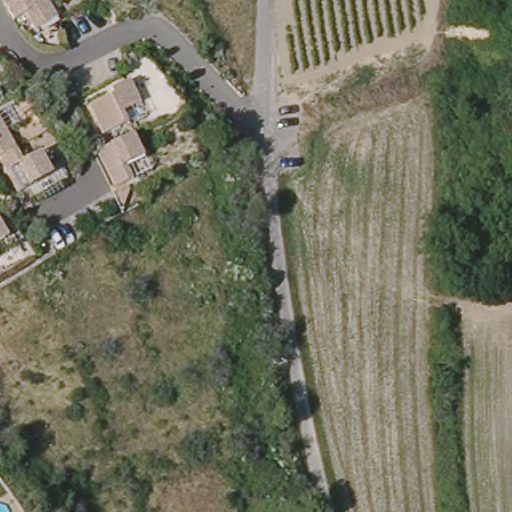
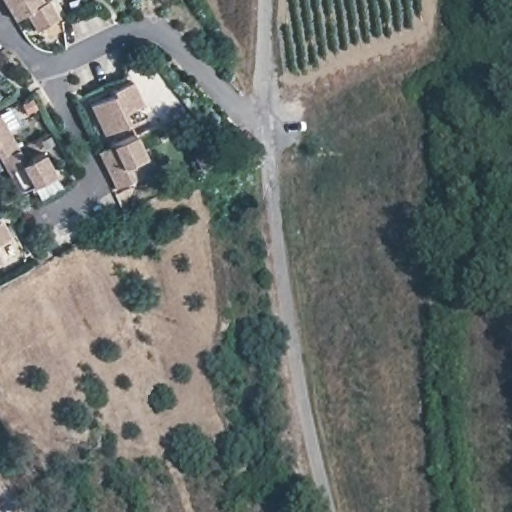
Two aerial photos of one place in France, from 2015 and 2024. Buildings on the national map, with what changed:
unchanged [(63,12),(42,25),(35,14),(23,21),(12,0),(55,0),(63,12)]
unchanged [(142,103),(125,110),(130,122),(104,135),(90,105),(115,94),(111,89),(131,80),(142,103)]
unchanged [(0,156),(0,116),(18,147),(0,156)]
unchanged [(135,134),(146,156),(128,164),(133,178),(115,187),(115,185),(114,185),(98,151),(135,134)]
unchanged [(25,159),(42,150),(55,172),(20,191),(0,156),(18,147),(25,159)]
unchanged [(122,212),(113,192),(132,185),(122,212)]
unchanged [(0,254),(0,212),(3,210),(15,232),(21,242),(3,252),(0,254)]

